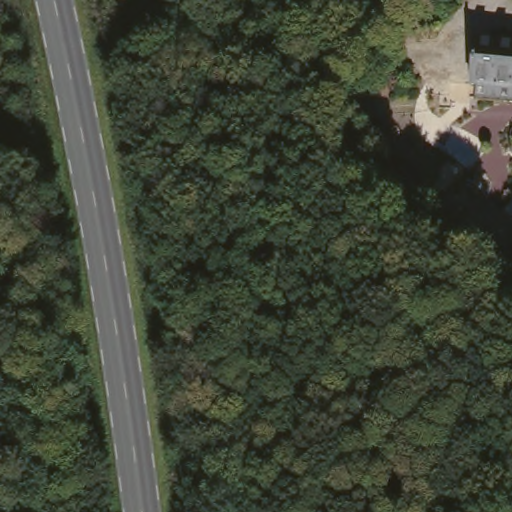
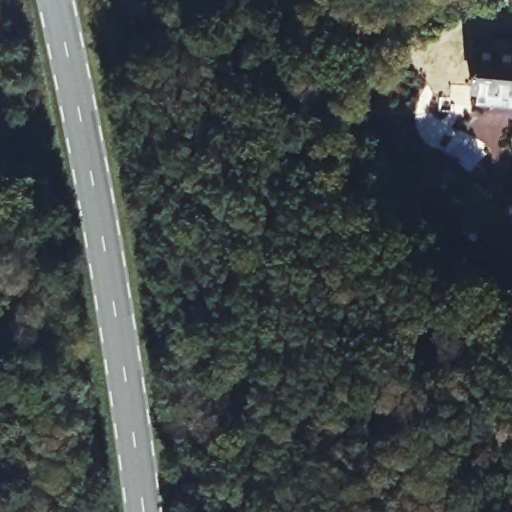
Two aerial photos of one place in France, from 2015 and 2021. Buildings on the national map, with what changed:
unchanged [(512,45),(512,102),(478,99),(479,85),(473,85),(477,41),(512,45)]

